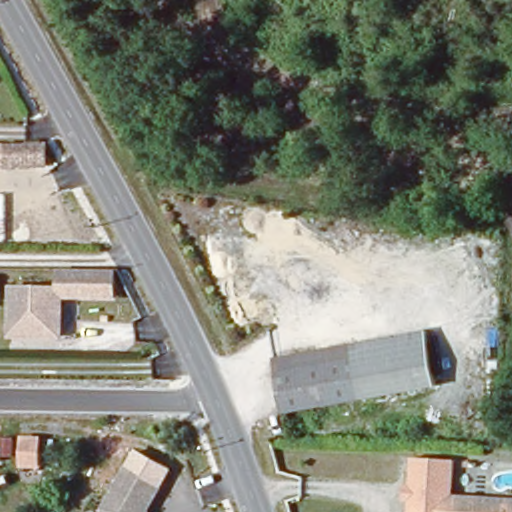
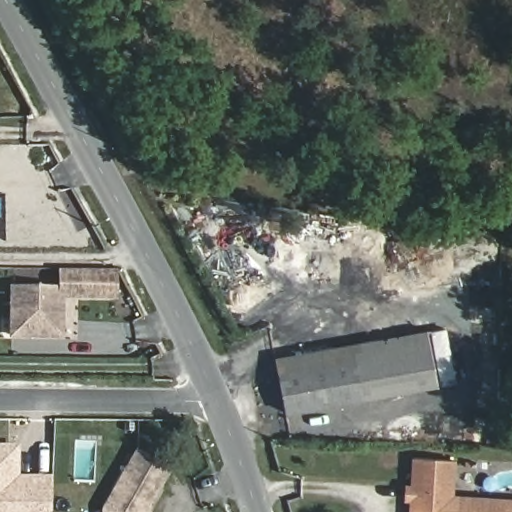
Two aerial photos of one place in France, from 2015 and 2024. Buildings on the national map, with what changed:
unchanged [(42,169),(3,168),(3,170),(0,170),(0,146),(3,146),(43,147),(42,169)]
unchanged [(61,299),(61,339),(12,339),(12,292),(60,292),(60,276),(61,273),(116,275),(115,299),(61,299)]
unchanged [(271,361),(422,332),(432,387),(355,401),(348,362),(274,376),(271,361)]
unchanged [(355,401),(281,415),(274,376),(348,362),(355,401)]
new [(18,477),(16,512),(0,511),(0,446),(19,447),(18,477)]
unchanged [(413,460),(454,461),(452,499),(512,502),(512,512),(411,512),(413,460)]
unchanged [(148,511),(148,512),(100,512),(100,510),(124,465),(160,487),(148,511)]
new [(0,511),(16,512),(18,477),(34,478),(55,478),(54,512),(0,512),(0,511)]

